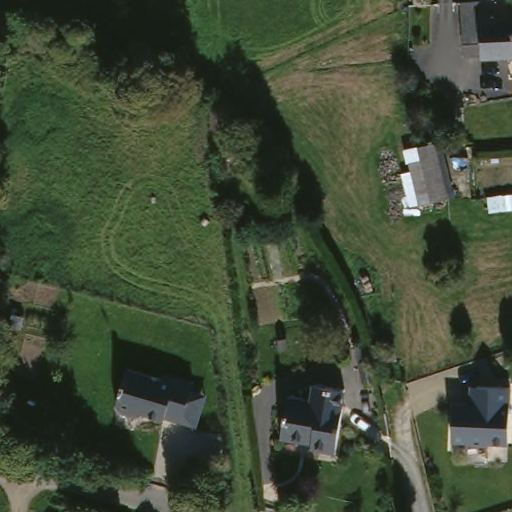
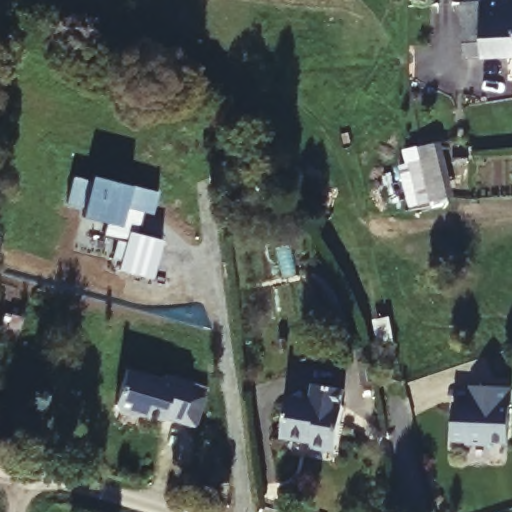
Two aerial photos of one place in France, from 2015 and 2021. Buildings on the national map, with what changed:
unchanged [(465,60),(450,60),(449,12),(507,7),(508,22),(512,22),(512,62),(465,64),(465,60)]
unchanged [(410,172),(424,170),(420,152),(421,152),(435,149),(447,204),(432,206),(432,207),(428,190),(415,193),(410,172)]
new [(75,178),(94,182),(95,177),(160,194),(155,215),(138,211),(136,219),(145,221),(141,235),(165,241),(155,280),(122,270),(126,256),(116,254),(120,241),(105,237),(109,224),(84,217),(86,210),(68,205),(75,178)]
unchanged [(186,431),(172,427),(155,422),(154,425),(134,418),(128,421),(109,415),(106,409),(117,372),(150,383),(158,378),(184,386),(182,395),(196,400),(186,431)]
unchanged [(451,401),(468,400),(470,385),(510,390),(505,443),(449,439),(451,401)]
unchanged [(337,414),(330,454),(306,449),(306,445),(277,440),(282,405),(337,414)]

